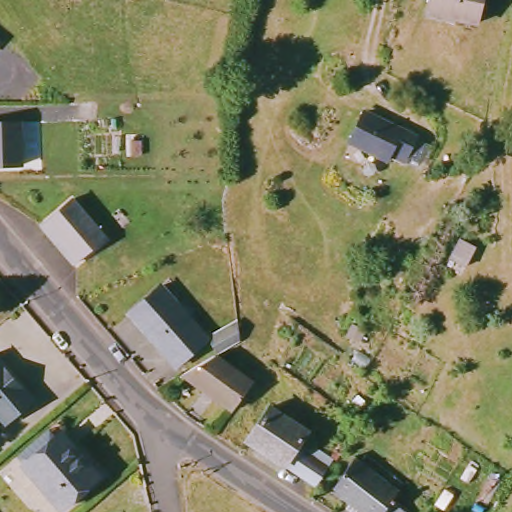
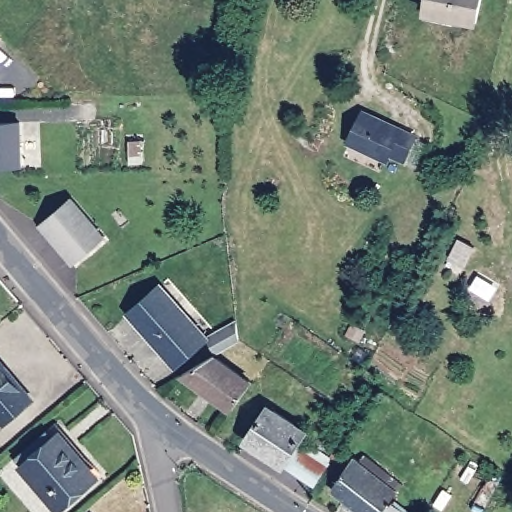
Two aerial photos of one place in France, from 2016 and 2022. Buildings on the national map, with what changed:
unchanged [(420,16),(423,0),(477,0),(474,25),(420,16)]
unchanged [(387,155),(384,161),(349,143),(362,115),(412,138),(402,162),(387,155)]
unchanged [(22,165),(0,166),(0,122),(22,121),(22,165)]
unchanged [(37,220),(42,216),(68,193),(100,232),(73,254),(68,257),(37,220)]
unchanged [(445,258),(454,239),(468,246),(459,264),(445,258)]
unchanged [(124,312),(155,287),(201,337),(172,366),(124,312)]
unchanged [(210,353),(204,336),(232,322),(234,339),(210,353)]
unchanged [(179,373),(207,356),(244,383),(225,408),(179,373)]
unchanged [(0,420),(0,366),(27,397),(0,420)]
unchanged [(235,439),(260,404),(304,434),(292,453),(321,474),(310,490),(235,439)]
unchanged [(15,465),(47,437),(70,463),(74,460),(89,476),(55,509),(15,465)]
unchanged [(354,460),(395,492),(387,502),(398,512),(355,512),(327,490),(354,460)]

